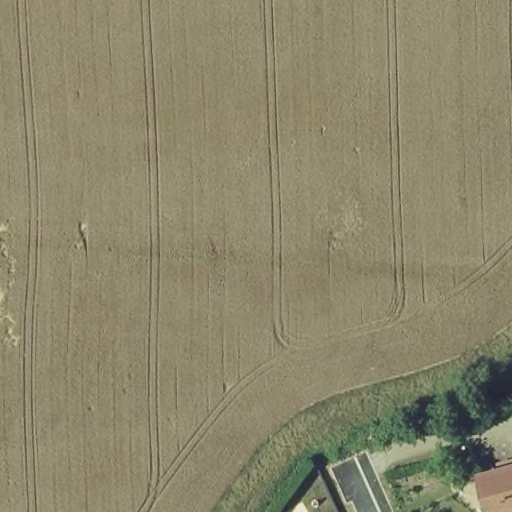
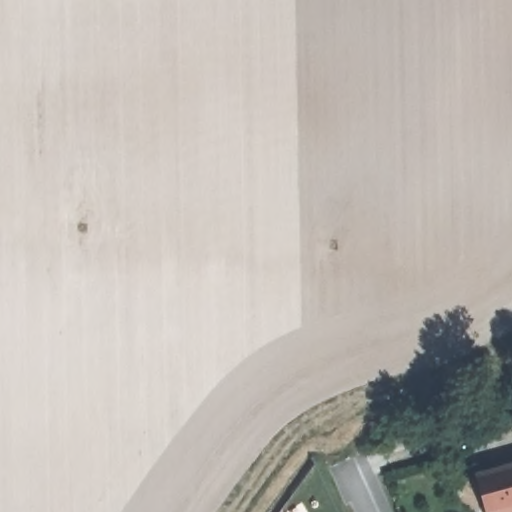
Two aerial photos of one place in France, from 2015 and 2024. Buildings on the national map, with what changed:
unchanged [(490,512),(480,476),(512,467),(512,512),(490,512)]

